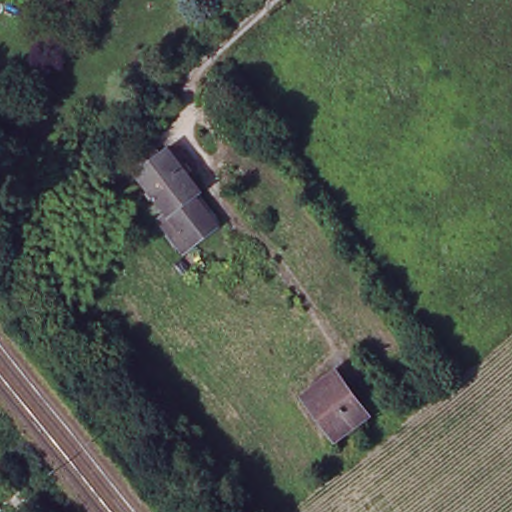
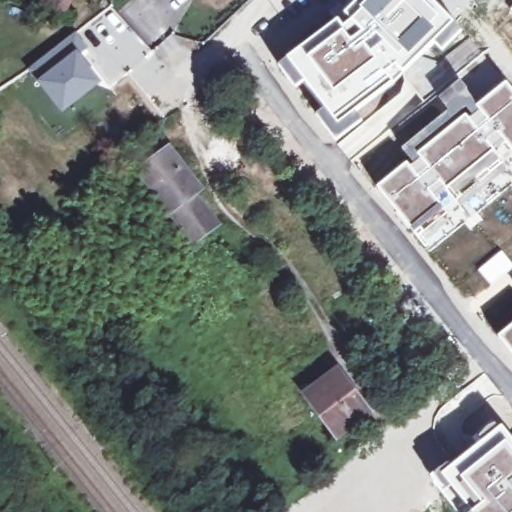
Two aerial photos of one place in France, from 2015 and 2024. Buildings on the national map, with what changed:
unchanged [(48,0),(68,0),(64,11),(46,5),(48,0)]
new [(353,0),(435,0),(463,31),(441,51),(434,44),(395,82),(357,113),(363,119),(339,139),(332,131),(336,129),(302,84),(295,89),(276,65),(338,15),(353,0)]
new [(512,13),(508,8),(512,5),(512,13)]
new [(74,31),(86,47),(81,52),(103,80),(61,113),(27,67),(74,31)]
new [(399,148),(446,109),(436,97),(458,79),(477,103),(507,79),(512,86),(512,184),(429,253),(374,186),(409,159),(399,148)]
unchanged [(151,188),(139,171),(168,149),(199,190),(193,194),(217,225),(184,250),(160,217),(168,211),(156,194),(151,198),(147,192),(151,188)]
new [(512,263),(512,266),(490,285),(476,269),(500,249),(512,263)]
new [(512,354),(497,335),(512,323),(512,354)]
unchanged [(347,427),(321,392),(349,370),(375,407),(347,427)]
new [(475,440),(499,419),(512,435),(512,512),(456,512),(429,476),(436,470),(475,440)]

